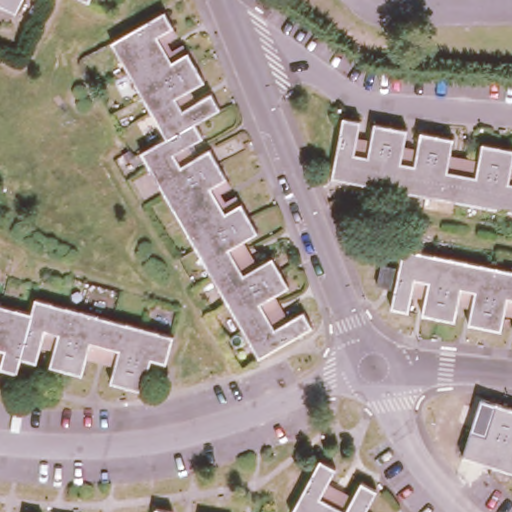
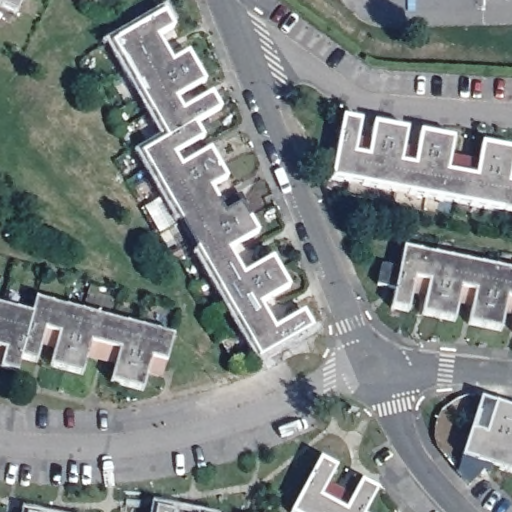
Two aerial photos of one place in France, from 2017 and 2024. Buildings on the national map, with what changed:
unchanged [(0,6),(0,0),(22,0),(16,14),(0,6)]
unchanged [(179,26),(165,34),(180,60),(195,52),(210,79),(180,96),(189,110),(218,93),(227,108),(195,126),(202,140),(174,156),(182,170),(210,154),(225,181),(210,190),(225,217),(241,208),(257,235),(228,252),(244,280),(272,263),(287,289),(259,306),(275,334),(304,318),(311,330),(258,360),(142,156),(174,138),(119,41),(171,11),(179,26)]
unchanged [(329,173),(342,113),(357,116),(350,148),(367,151),(374,120),(405,126),(398,157),(414,160),(420,129),(452,135),(445,166),(477,173),(483,141),(512,147),(512,159),(508,179),(512,179),(512,210),(329,173)]
unchanged [(501,330),(470,325),(476,293),(461,290),(455,323),(424,317),(430,284),(414,282),(409,315),(393,312),(397,290),(379,287),(382,266),(400,269),(403,252),(512,270),(512,299),(507,298),(501,330)]
unchanged [(92,343),(83,376),(54,368),(62,335),(47,331),(39,364),(22,359),(18,375),(3,371),(7,355),(0,353),(0,308),(34,317),(38,300),(174,337),(167,363),(153,359),(145,392),(112,383),(122,351),(92,343)]
unchanged [(485,437),(496,405),(512,410),(512,470),(464,455),(471,432),(485,437)]
unchanged [(339,470),(324,498),(350,512),(365,484),(379,491),(367,512),(296,512),(324,461),(339,470)]
unchanged [(171,508),(170,512),(153,512),(155,504),(171,508)]

